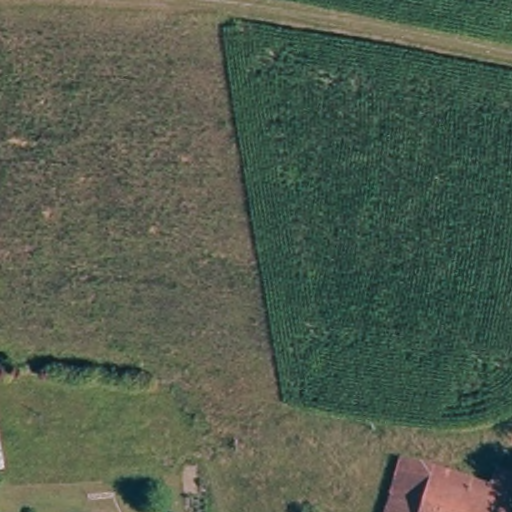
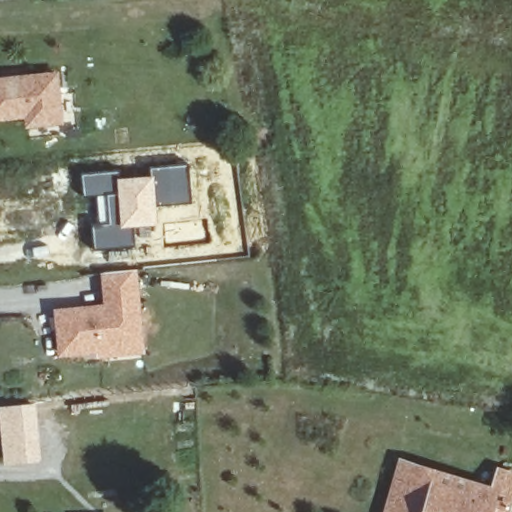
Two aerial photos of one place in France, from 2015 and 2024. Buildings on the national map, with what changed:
new [(32,80),(59,77),(64,125),(31,129),(30,120),(0,123),(0,84),(25,81),(32,80)]
new [(188,163),(192,203),(156,206),(151,173),(150,166),(188,163)]
new [(84,196),(81,172),(117,170),(117,175),(151,173),(156,206),(157,225),(135,226),(136,246),(94,250),(92,224),(97,224),(95,195),(84,196)]
new [(137,270),(145,355),(97,358),(96,352),(100,352),(100,344),(141,340),(139,305),(106,308),(101,272),(137,270)]
new [(139,305),(141,340),(100,344),(100,352),(62,354),(59,312),(139,305)]
new [(37,404),(43,461),(5,465),(0,422),(0,408),(37,404)]
unchanged [(440,470),(429,512),(376,512),(393,455),(440,470)]
unchanged [(493,486),(498,467),(512,473),(512,512),(429,512),(440,470),(493,486)]

